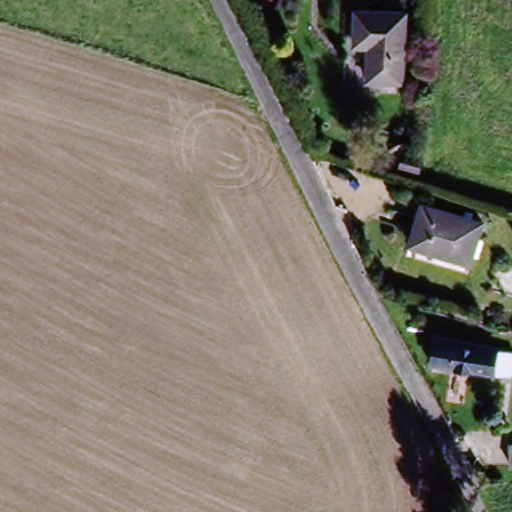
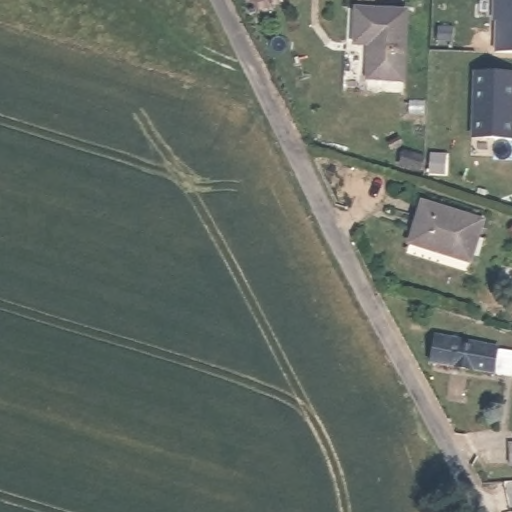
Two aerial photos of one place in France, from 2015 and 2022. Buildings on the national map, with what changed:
new [(512,0),(512,21),(493,20),(494,0),(512,0)]
unchanged [(366,2),(412,15),(393,81),(361,70),(372,32),(358,28),(366,2)]
new [(474,71),(512,73),(512,117),(511,139),(471,136),(474,71)]
unchanged [(424,201),(481,222),(467,262),(410,241),(424,201)]
unchanged [(426,360),(428,336),(512,352),(512,375),(426,360)]

